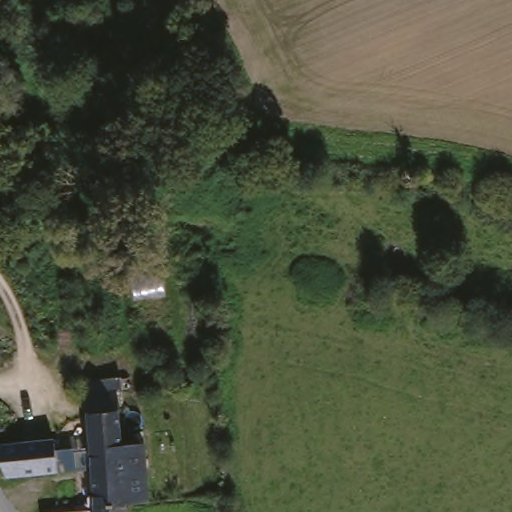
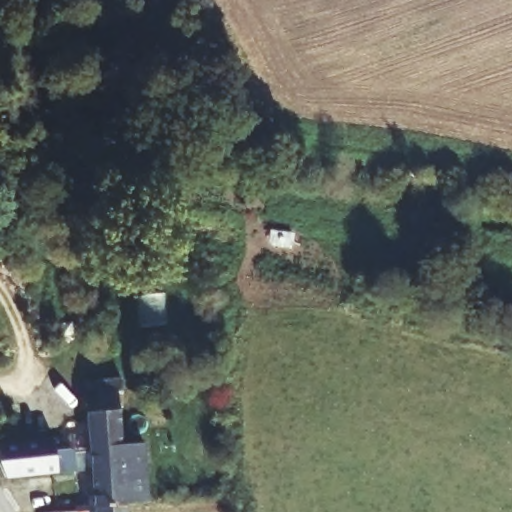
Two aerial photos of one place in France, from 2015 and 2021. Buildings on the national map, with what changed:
unchanged [(96,381),(131,380),(132,394),(125,395),(129,447),(152,446),(155,499),(131,500),(120,501),(100,502),(96,381)]
unchanged [(53,428),(57,473),(4,475),(0,431),(53,428)]
unchanged [(46,505),(100,502),(120,501),(131,500),(132,512),(47,512),(46,505)]

